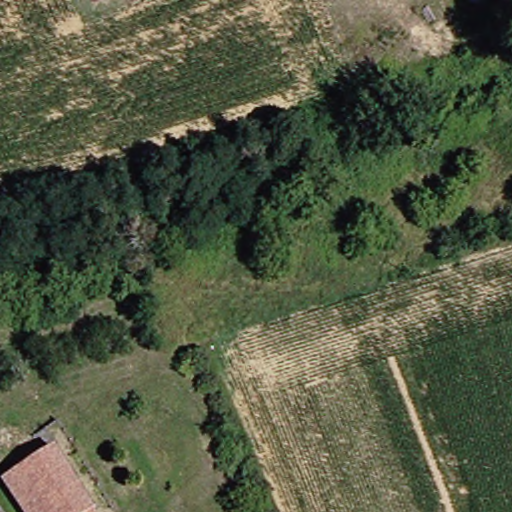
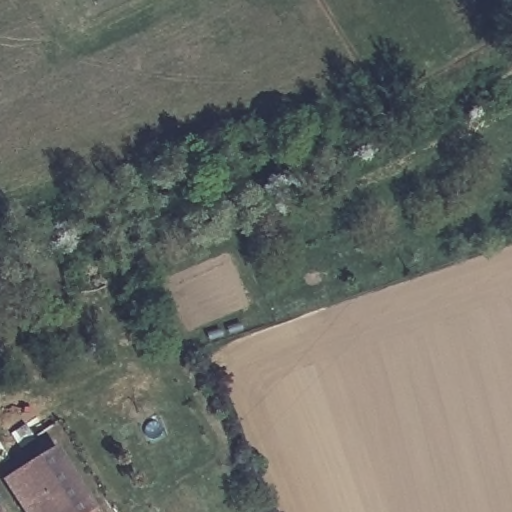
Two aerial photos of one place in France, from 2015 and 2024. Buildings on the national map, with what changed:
unchanged [(0,478),(35,453),(44,447),(44,448),(87,508),(90,512),(15,512),(0,492),(0,478)]

